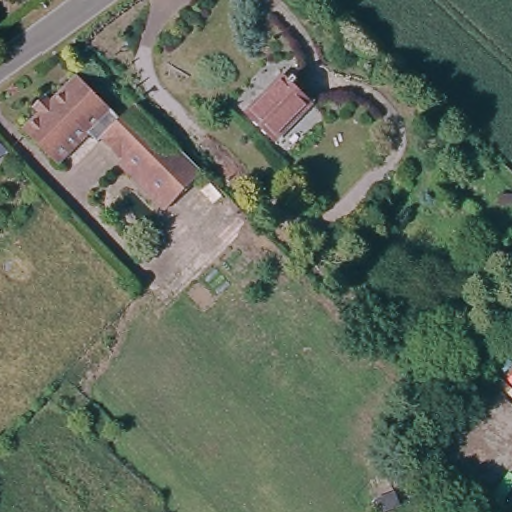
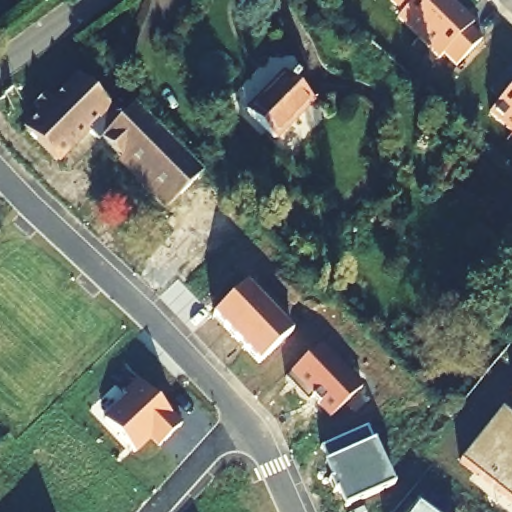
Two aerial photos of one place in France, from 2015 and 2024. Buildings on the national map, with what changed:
new [(402,14),(390,1),(391,0),(448,0),(452,5),(418,39),(398,19),(402,14)]
new [(444,55),(440,60),(418,39),(452,5),(473,25),(468,30),(482,42),(457,67),(444,55)]
unchanged [(275,141),(248,115),(287,76),(313,102),(275,141)]
unchanged [(121,126),(102,146),(98,150),(79,130),(47,162),(25,140),(42,123),(33,114),(45,102),(53,110),(79,85),(113,119),(121,126)]
new [(512,89),(512,134),(490,114),(512,89)]
unchanged [(195,170),(160,205),(102,146),(121,126),(113,119),(128,104),(195,170)]
demolished [(0,155),(0,148),(3,152),(0,155)]
new [(292,333),(259,365),(211,317),(247,283),(292,333)]
new [(362,388),(329,421),(315,410),(319,405),(312,398),(307,401),(285,379),(321,345),(362,388)]
new [(182,425),(157,450),(150,442),(138,453),(103,417),(125,397),(122,394),(137,380),(182,425)]
new [(512,421),(512,504),(460,463),(501,411),(512,421)]
new [(369,443),(373,442),(393,485),(343,508),(321,465),(327,463),(319,450),(365,430),(369,443)]
new [(425,512),(413,512),(417,506),(425,512)]

